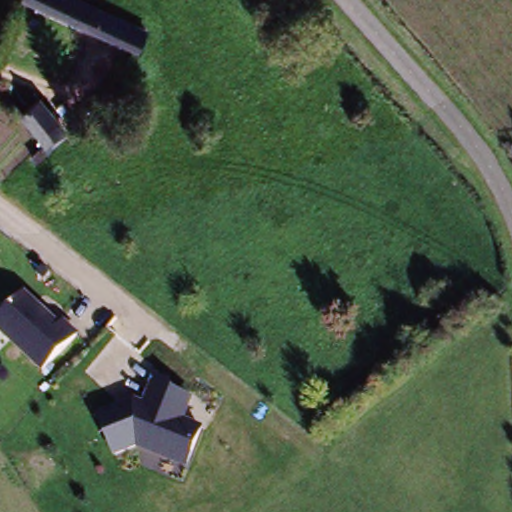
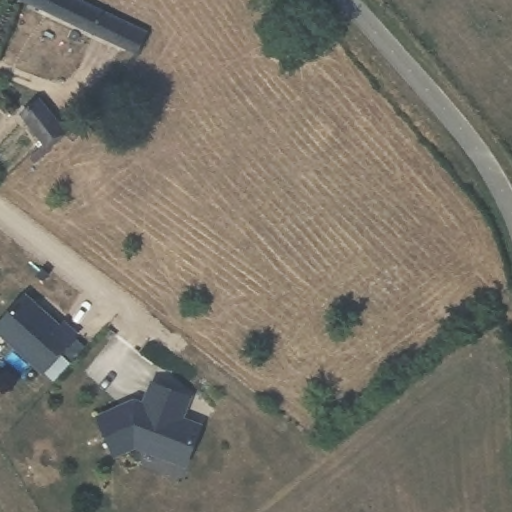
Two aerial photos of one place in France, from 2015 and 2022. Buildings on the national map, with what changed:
unchanged [(149,33),(138,56),(97,36),(94,35),(22,0),(83,0),(149,32),(149,33)]
unchanged [(57,136),(41,149),(20,119),(35,106),(57,136)]
unchanged [(60,327),(63,325),(78,337),(43,375),(0,335),(0,321),(22,295),(60,327)]
unchanged [(133,400),(143,405),(149,385),(193,400),(186,421),(205,429),(189,470),(137,448),(114,457),(96,416),(133,400)]

